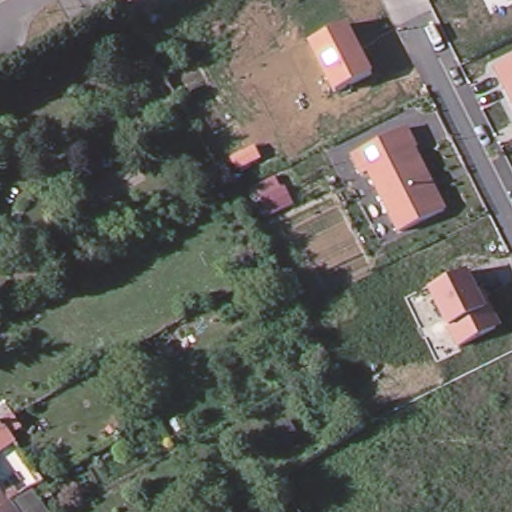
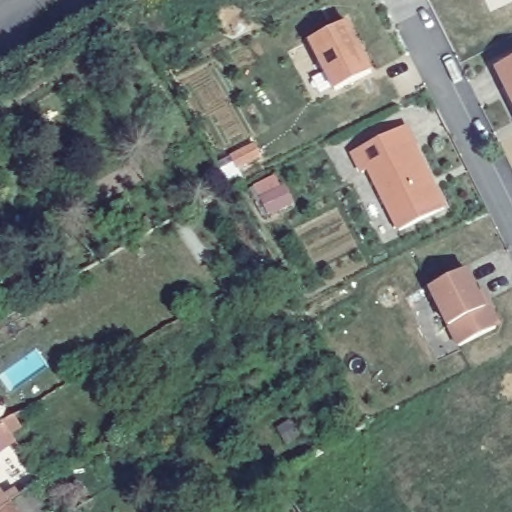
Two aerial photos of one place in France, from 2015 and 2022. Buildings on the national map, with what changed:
unchanged [(335,93),(309,40),(347,21),(374,72),(335,93)]
unchanged [(512,62),(512,105),(495,71),(512,62)]
unchanged [(399,232),(369,170),(362,175),(351,152),(407,126),(446,207),(399,232)]
unchanged [(459,348),(448,328),(431,290),(469,273),(485,304),(491,300),(503,325),(459,348)]
unchanged [(7,433),(0,438),(0,423),(7,433)]
unchanged [(15,491),(20,499),(25,495),(37,512),(0,512),(0,498),(1,497),(2,500),(15,491)]
unchanged [(1,497),(0,498),(0,497),(1,497)]

